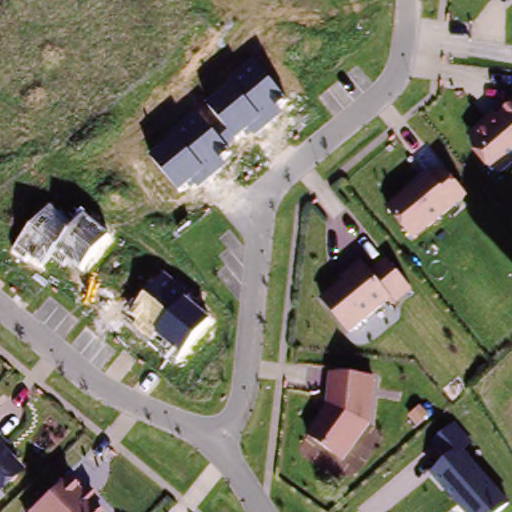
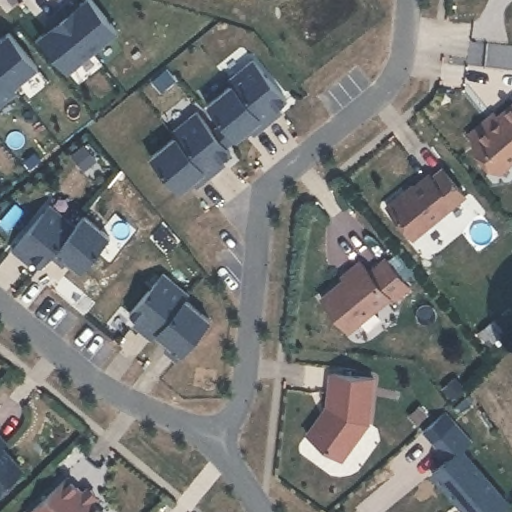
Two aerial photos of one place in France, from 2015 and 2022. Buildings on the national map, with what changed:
new [(78,6),(86,0),(95,0),(120,30),(95,50),(61,10),(73,0),(78,6)]
new [(55,26),(49,19),(61,10),(95,50),(70,71),(42,37),(55,26)]
new [(40,66),(15,86),(0,68),(0,41),(12,31),(40,66)]
new [(15,86),(19,90),(0,106),(0,68),(15,86)]
unchanged [(177,134),(180,139),(204,119),(212,129),(223,119),(211,104),(234,85),(237,91),(262,71),(285,98),(277,104),(284,111),(255,134),(249,129),(217,155),(225,164),(198,187),(194,180),(180,191),(152,155),(177,134)]
unchanged [(499,175),(474,150),(465,134),(490,113),(496,116),(512,104),(512,165),(499,175)]
unchanged [(466,197),(412,241),(385,208),(427,175),(430,179),(442,169),(466,197)]
unchanged [(73,225),(84,213),(109,234),(80,265),(69,257),(62,264),(50,254),(40,265),(27,255),(23,259),(14,249),(51,205),(73,225)]
unchanged [(410,290),(394,305),(389,300),(350,334),(320,298),(342,279),(339,275),(360,259),(370,270),(383,259),(410,290)]
unchanged [(179,354),(130,314),(159,278),(210,318),(179,354)]
unchanged [(375,379),(369,427),(342,461),(305,434),(325,406),(327,374),(375,379)]
unchanged [(470,444),(462,453),(508,503),(498,512),(463,512),(429,474),(442,459),(429,447),(453,424),(470,444)]
unchanged [(0,438),(6,444),(2,448),(22,469),(0,492),(0,438)]
unchanged [(102,512),(29,512),(67,477),(102,512)]

